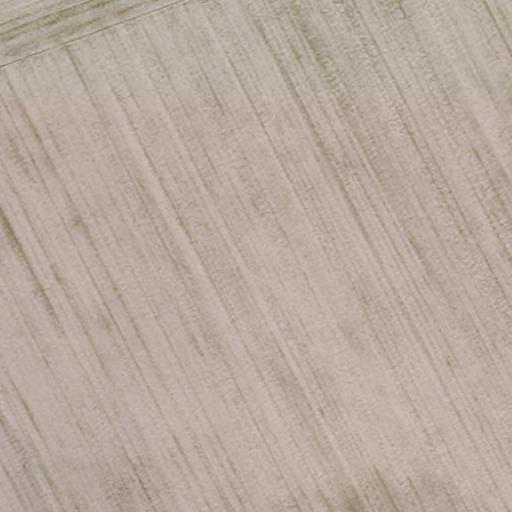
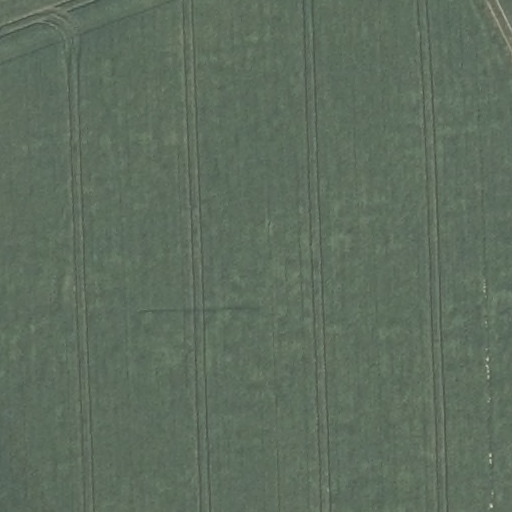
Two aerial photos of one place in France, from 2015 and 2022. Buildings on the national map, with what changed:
[]

